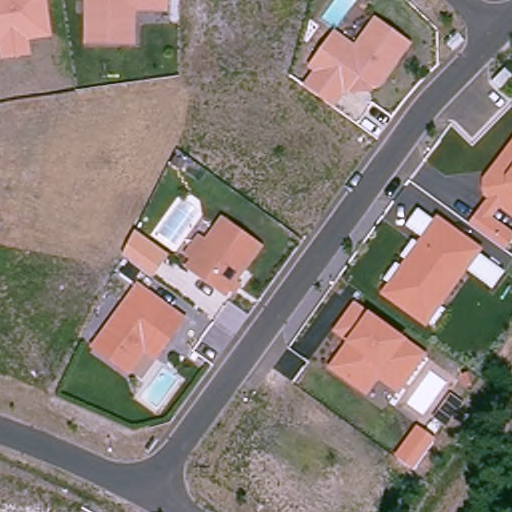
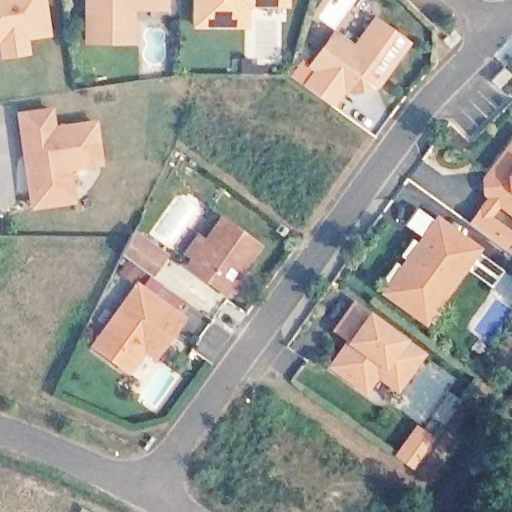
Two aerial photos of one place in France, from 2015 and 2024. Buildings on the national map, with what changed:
unchanged [(52,37),(30,41),(32,55),(0,60),(0,58),(0,0),(46,0),(52,37)]
unchanged [(120,40),(87,40),(88,0),(166,0),(166,7),(132,6),(132,40),(120,40)]
new [(290,8),(250,7),(249,29),(192,29),(192,0),(291,0),(290,8)]
unchanged [(358,91),(357,88),(346,89),(334,105),(308,86),(320,70),(314,65),(316,63),(338,33),(358,48),(380,20),(411,44),(384,80),(381,84),(371,86),(371,89),(358,91)]
unchanged [(498,86),(490,79),(503,66),(511,73),(498,86)]
new [(31,207),(29,192),(24,154),(22,140),(18,114),(50,109),(53,128),(94,122),(100,163),(67,167),(70,186),(72,201),(31,207)]
unchanged [(480,182),(512,140),(512,217),(500,209),(494,216),(512,231),(512,239),(505,251),(466,222),(484,197),(480,182)]
unchanged [(432,326),(392,296),(396,290),(383,281),(395,264),(404,271),(409,264),(400,257),(411,241),(421,248),(425,242),(405,227),(416,211),(502,273),(490,289),(470,274),(443,311),(432,326)]
unchanged [(233,291),(229,288),(225,293),(188,266),(194,258),(187,253),(199,237),(206,242),(223,219),(259,246),(233,281),(238,285),(233,291)]
unchanged [(153,247),(165,256),(151,276),(147,273),(120,254),(129,236),(132,231),(153,247)]
unchanged [(143,380),(131,373),(128,376),(91,345),(138,284),(187,320),(158,362),(143,380)]
unchanged [(346,342),(330,332),(352,300),(368,312),(405,338),(426,354),(399,391),(378,378),(368,393),(329,367),(346,342)]
unchanged [(436,438),(413,465),(394,454),(417,426),(436,438)]

